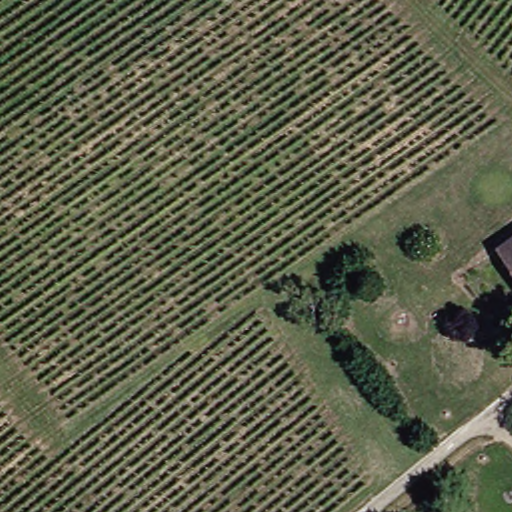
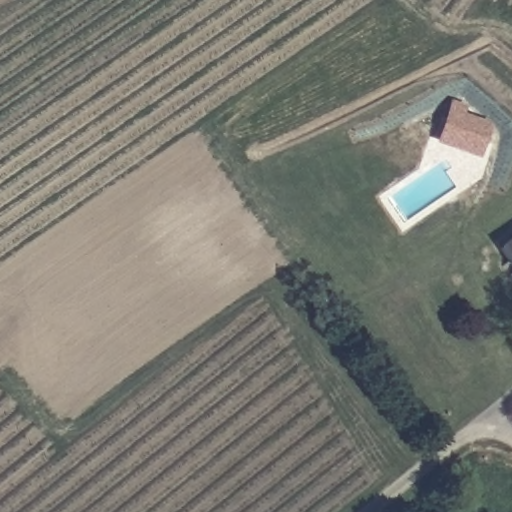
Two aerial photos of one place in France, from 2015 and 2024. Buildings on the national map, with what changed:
new [(436,143),(451,100),(468,106),(465,115),(490,123),(478,158),(436,143)]
unchanged [(512,238),(512,287),(488,255),(512,238)]

